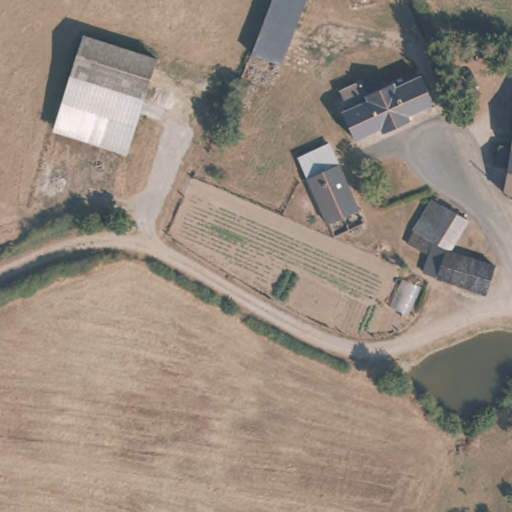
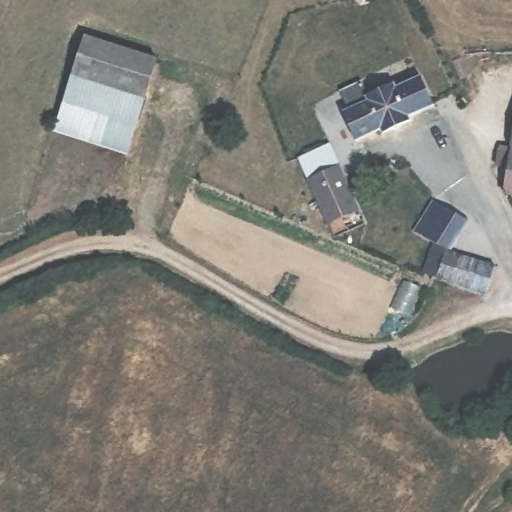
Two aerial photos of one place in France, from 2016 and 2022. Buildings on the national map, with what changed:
demolished [(275,0),(309,0),(283,71),(254,57),(275,0)]
unchanged [(80,42),(157,66),(126,163),(49,136),(80,42)]
unchanged [(397,93),(397,96),(424,84),(437,109),(417,119),(420,126),(383,141),(381,135),(360,144),(348,117),(370,111),(367,105),(397,93)]
unchanged [(512,198),(505,197),(512,153),(512,198)]
unchanged [(355,203),(326,217),(305,170),(334,157),(355,203)]
unchanged [(443,210),(463,215),(455,253),(496,264),(489,293),(430,279),(424,278),(428,261),(418,259),(421,249),(414,247),(422,207),(443,210)]

